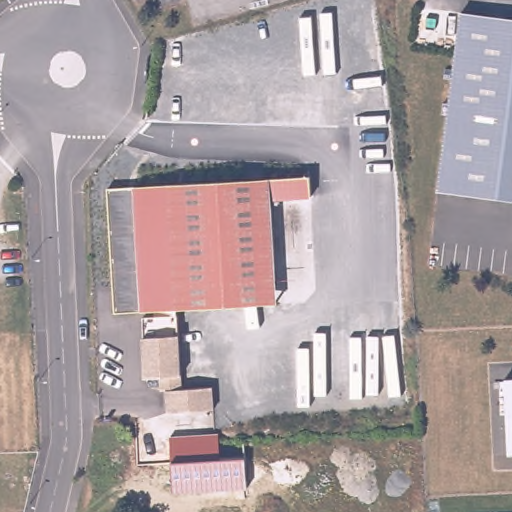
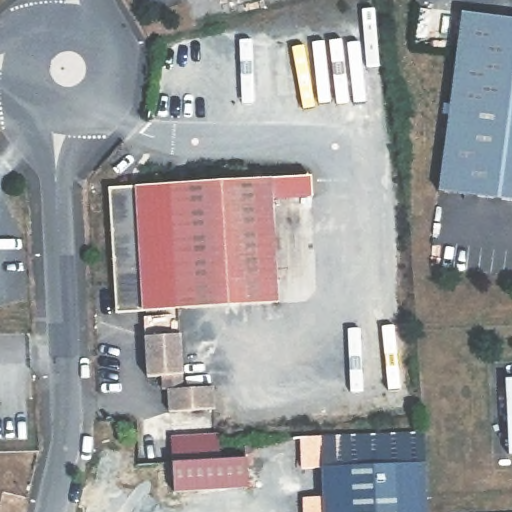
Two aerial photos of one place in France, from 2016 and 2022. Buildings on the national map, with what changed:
unchanged [(512,15),(512,197),(439,187),(462,9),(512,15)]
unchanged [(313,175),(314,195),(275,197),(280,302),(120,312),(112,187),(313,175)]
unchanged [(178,316),(179,336),(181,377),(182,389),(213,387),(214,410),(168,412),(166,390),(160,390),(160,378),(146,379),(144,338),(143,319),(178,316)]
unchanged [(504,380),(512,380),(512,455),(508,455),(504,380)]
unchanged [(129,426),(130,439),(119,439),(119,425),(129,426)]
unchanged [(174,494),(172,462),(171,437),(220,434),(222,459),(247,458),(247,489),(174,494)]
new [(320,467),(423,462),(425,512),(323,512),(320,467)]

